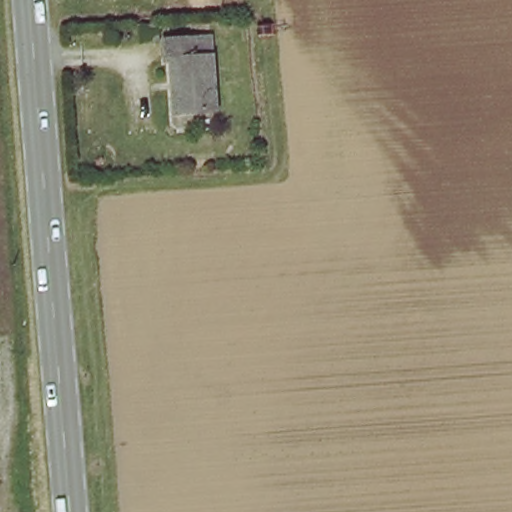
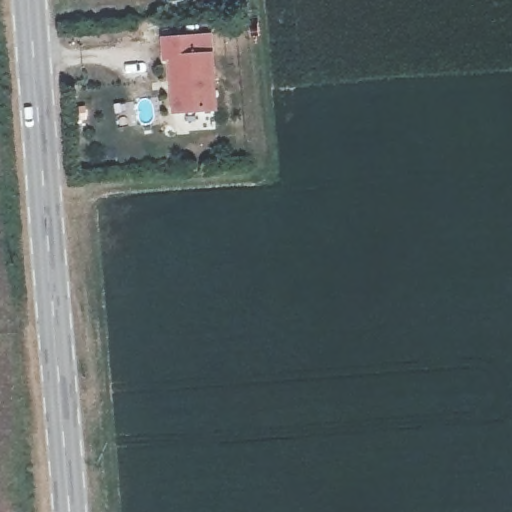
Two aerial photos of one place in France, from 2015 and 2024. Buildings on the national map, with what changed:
unchanged [(158,44),(139,44),(138,26),(157,26),(158,35),(158,44)]
unchanged [(219,105),(179,108),(176,53),(166,54),(165,35),(196,33),(197,50),(216,47),(219,105)]

